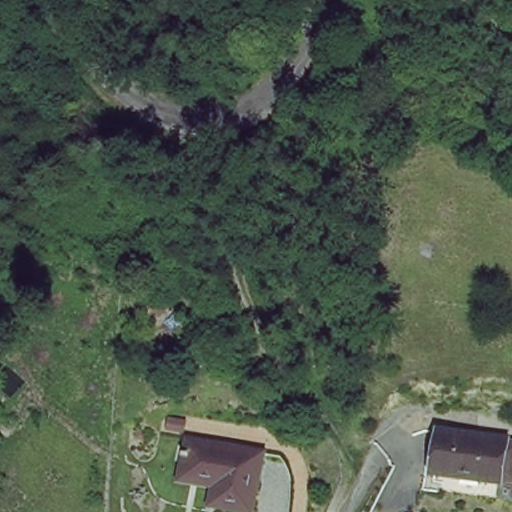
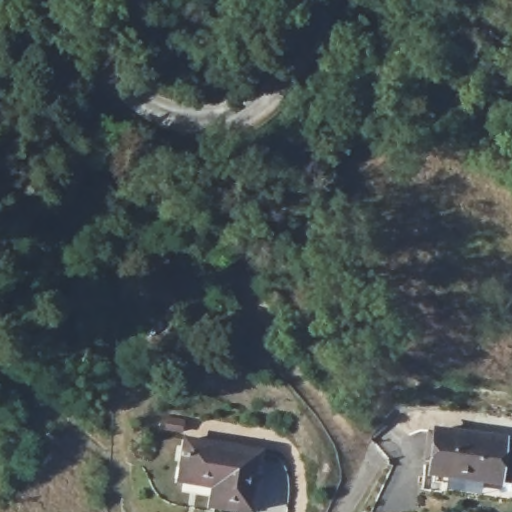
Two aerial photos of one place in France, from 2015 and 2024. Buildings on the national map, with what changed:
unchanged [(429,476),(433,433),(501,437),(498,480),(429,476)]
unchanged [(265,452),(253,512),(245,512),(211,505),(215,485),(182,478),(190,436),(265,452)]

